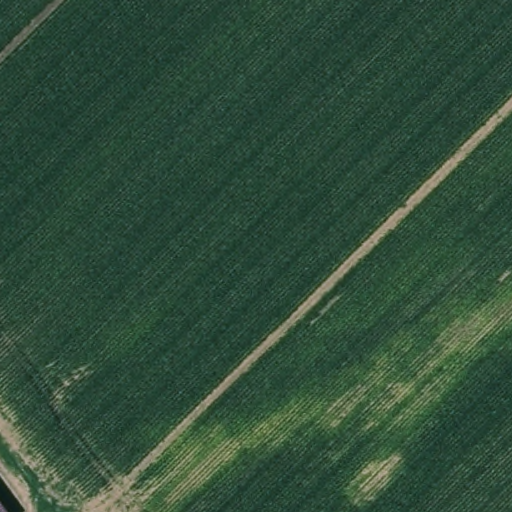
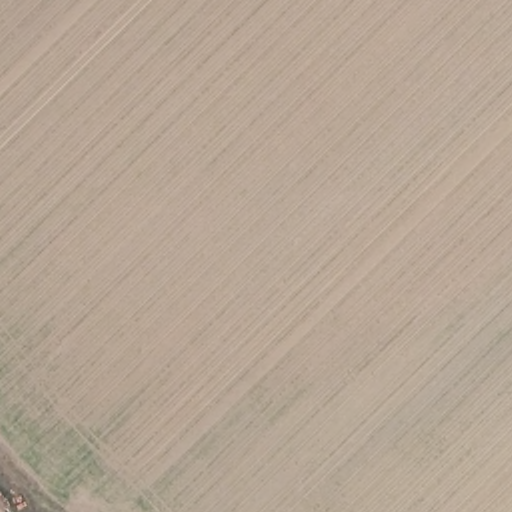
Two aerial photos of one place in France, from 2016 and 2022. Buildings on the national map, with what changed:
unchanged [(0,502),(8,512),(0,512),(0,502)]

